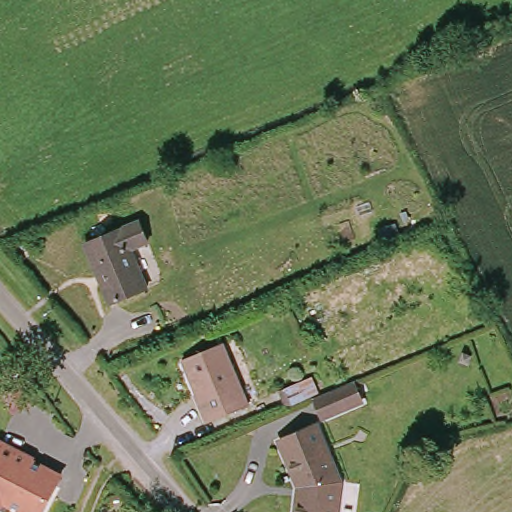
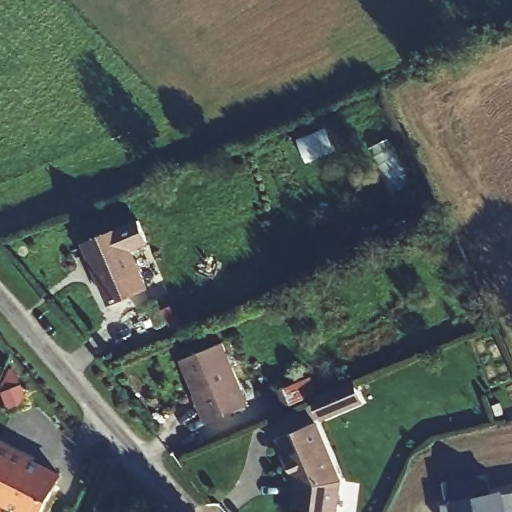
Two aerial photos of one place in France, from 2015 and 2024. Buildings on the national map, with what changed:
unchanged [(137,222),(146,246),(125,253),(139,289),(101,303),(79,245),(137,222)]
unchanged [(223,346),(246,407),(206,422),(182,362),(223,346)]
unchanged [(304,374),(310,390),(278,402),(272,386),(304,374)]
unchanged [(334,512),(294,512),(305,483),(288,433),(324,421),(347,482),(334,512)]
unchanged [(59,473),(39,512),(38,512),(10,498),(0,504),(0,443),(59,473)]
new [(492,493),(512,492),(512,512),(451,512),(446,483),(489,476),(492,493)]

